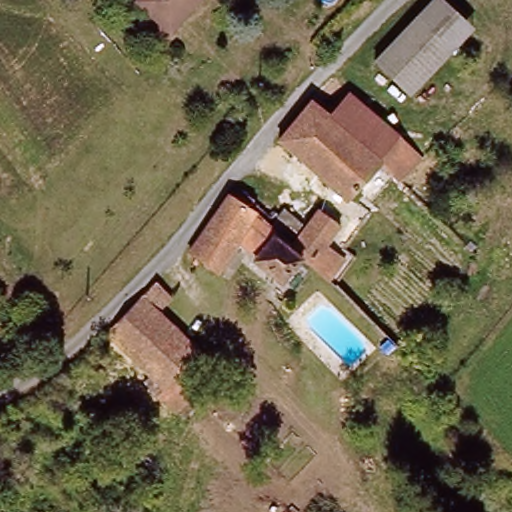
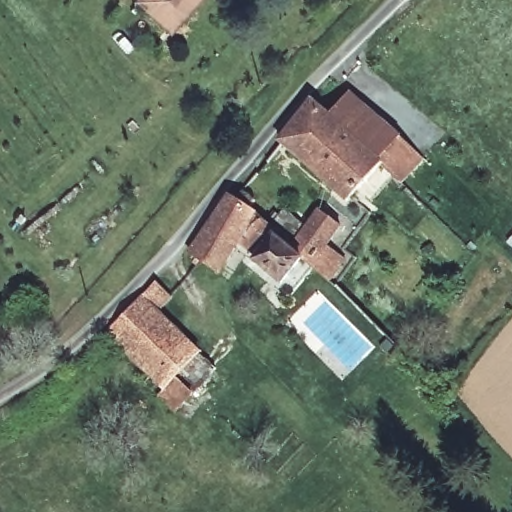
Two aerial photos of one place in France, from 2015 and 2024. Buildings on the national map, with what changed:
unchanged [(168,33),(135,8),(141,0),(202,0),(191,14),(173,36),(168,33)]
demolished [(431,0),(440,0),(473,28),(447,59),(412,22),(431,0)]
demolished [(447,59),(413,99),(373,66),(412,22),(447,59)]
unchanged [(350,201),(348,203),(277,144),(311,101),(329,117),(347,100),(397,146),(418,166),(402,186),(381,166),(350,201)]
unchanged [(261,260),(241,244),(216,276),(191,259),(229,196),(236,203),(245,196),(255,205),(251,211),(272,227),(285,216),(306,234),(333,203),(351,217),(328,243),(350,260),(333,280),(311,259),(285,290),(257,267),(261,260)]
unchanged [(157,289),(174,305),(157,322),(201,363),(183,382),(197,397),(177,416),(137,379),(142,371),(108,338),(157,289)]

